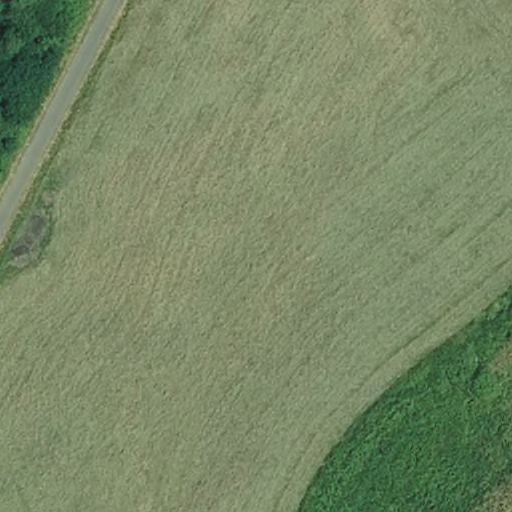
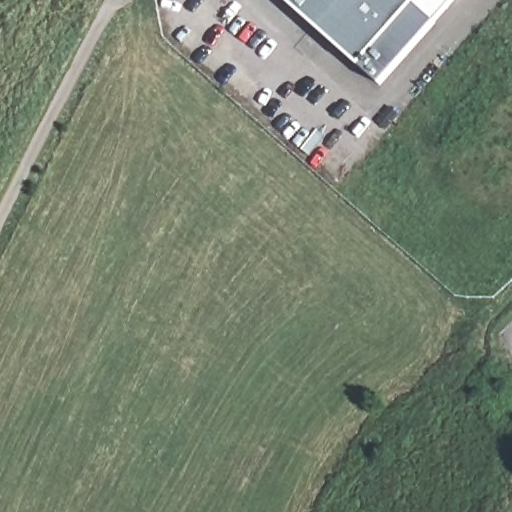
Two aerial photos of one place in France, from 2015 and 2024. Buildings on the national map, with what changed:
new [(359,66),(286,0),(455,0),(379,85),(359,66)]

